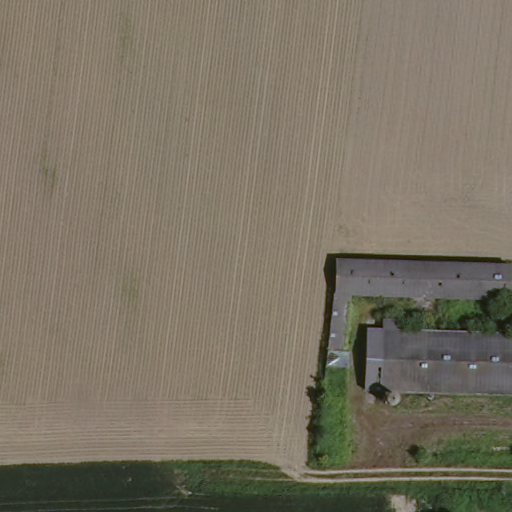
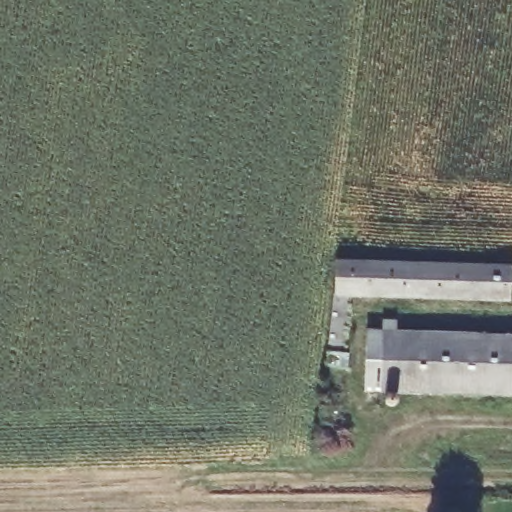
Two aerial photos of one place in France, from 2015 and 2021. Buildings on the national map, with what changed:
unchanged [(506,274),(505,305),(346,298),(338,355),(320,354),(330,264),(506,274)]
unchanged [(377,335),(505,342),(512,342),(512,399),(375,394),(377,335)]

